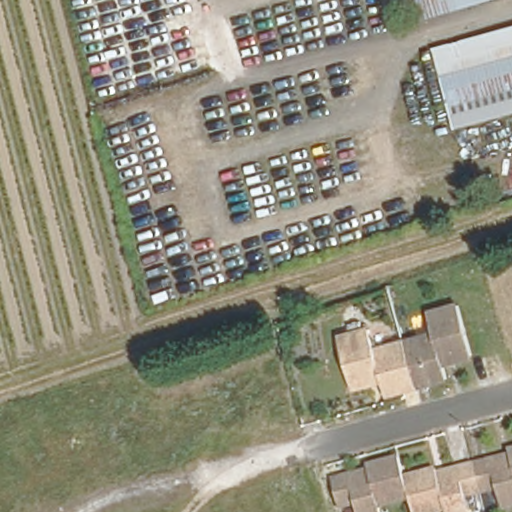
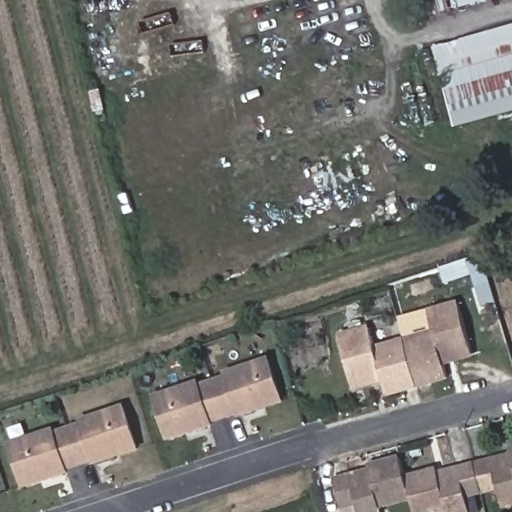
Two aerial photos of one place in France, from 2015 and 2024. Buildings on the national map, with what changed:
unchanged [(420,0),(495,0),(426,20),(420,0)]
unchanged [(433,46),(512,26),(512,112),(452,127),(433,46)]
unchanged [(437,331),(432,311),(462,304),(475,354),(446,362),(449,377),(420,384),(407,339),(437,331)]
unchanged [(420,384),(389,392),(385,378),(357,386),(343,336),(373,327),(378,347),(407,339),(420,384)]
new [(239,416),(214,424),(215,427),(168,442),(154,395),(200,381),(201,383),(225,376),(225,372),(270,357),(285,404),(240,418),(239,416)]
new [(95,463),(69,471),(69,474),(22,489),(8,443),(55,428),(56,431),(81,423),(80,420),(125,405),(140,451),(95,466),(95,463)]
unchanged [(511,452),(510,449),(512,449),(512,500),(501,503),(497,486),(480,490),(473,462),(492,457),(511,452)]
unchanged [(370,464),(400,456),(401,457),(405,477),(410,495),(380,504),(383,512),(359,512),(356,502),(342,506),(340,507),(334,477),(350,472),(370,466),(370,464)]
unchanged [(438,471),(456,466),(473,462),(480,490),(465,494),(470,511),(468,512),(448,512),(446,508),(432,512),(415,512),(410,495),(405,477),(437,468),(438,471)]

